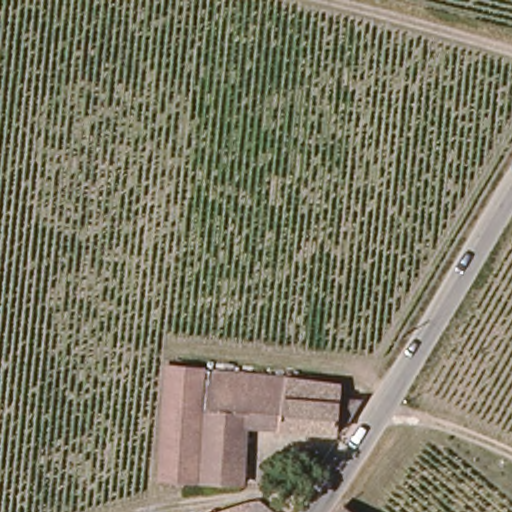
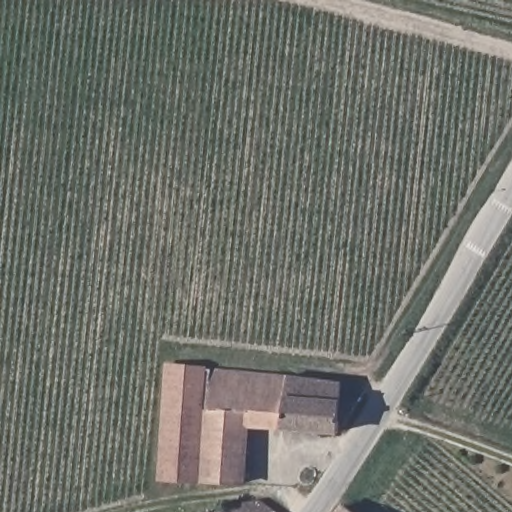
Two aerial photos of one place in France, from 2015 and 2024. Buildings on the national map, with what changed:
unchanged [(251,423),(247,481),(162,480),(162,370),(315,372),(314,366),(327,367),(327,375),(338,375),(337,390),(361,392),(339,427),(251,423)]
unchanged [(262,497),(279,512),(226,512),(262,497)]
unchanged [(342,504),(352,512),(336,512),(342,504)]
unchanged [(218,511),(219,512),(216,512),(218,511)]

